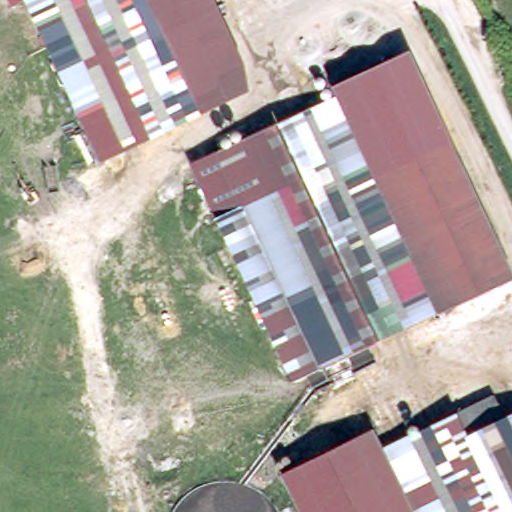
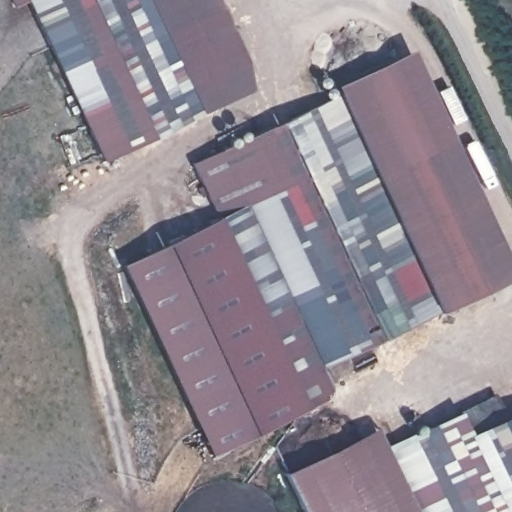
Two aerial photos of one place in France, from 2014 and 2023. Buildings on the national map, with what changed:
unchanged [(15,5),(12,0),(28,0),(24,2),(15,5)]
unchanged [(28,0),(202,0),(246,93),(99,161),(24,2),(28,0)]
unchanged [(512,258),(512,280),(498,286),(391,60),(414,50),(512,258)]
unchanged [(340,96),(335,87),(391,60),(498,286),(442,313),(326,368),(224,151),(340,96)]
new [(326,368),(295,380),(308,407),(208,453),(118,263),(218,215),(191,163),(224,151),(326,368)]
unchanged [(473,434),(512,415),(512,512),(421,512),(388,448),(461,410),(473,434)]
unchanged [(421,512),(308,512),(289,474),(378,428),(388,448),(421,512)]

